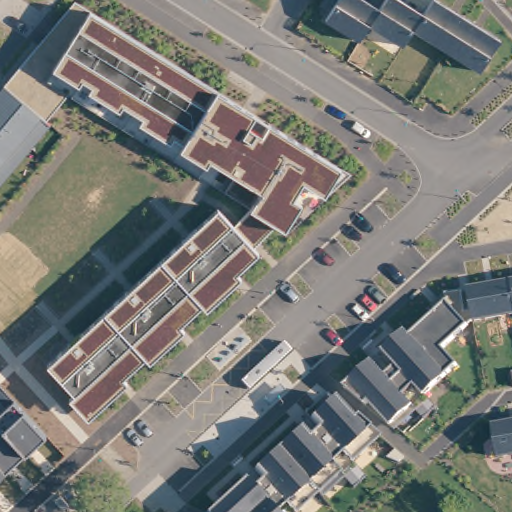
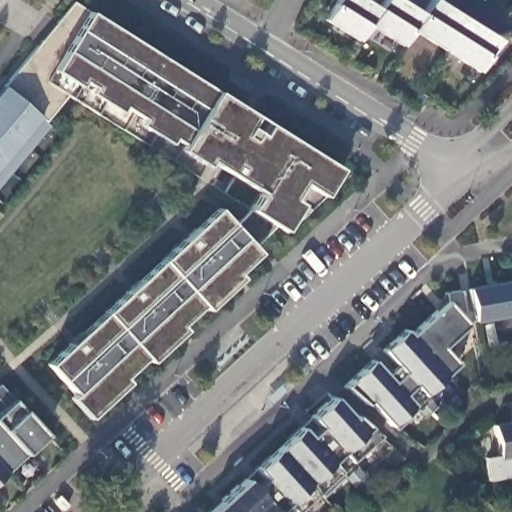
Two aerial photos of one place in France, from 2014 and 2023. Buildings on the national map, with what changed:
unchanged [(401,47),(368,27),(358,42),(329,23),(342,0),(361,0),(380,12),(387,0),(397,0),(423,17),(432,1),(498,40),(479,73),(412,31),(401,47)]
unchanged [(73,395),(45,364),(219,210),(235,227),(249,210),(260,197),(208,162),(204,167),(177,151),(166,145),(159,155),(66,97),(46,124),(53,128),(0,189),(0,94),(5,89),(74,5),(89,13),(219,95),(339,172),(324,196),(304,183),(292,202),(299,207),(283,233),(277,231),(257,255),(235,276),(239,281),(204,312),(199,307),(179,327),(183,332),(147,363),(144,360),(122,380),(125,383),(89,417),(70,399),(73,395)]
unchanged [(469,288),(512,281),(512,317),(473,323),(469,288)]
unchanged [(369,401),(364,403),(347,387),(373,361),(384,373),(394,365),(383,352),(405,332),(410,337),(449,303),(467,327),(443,351),(456,366),(424,396),(416,387),(404,397),(413,407),(392,427),(369,401)]
unchanged [(245,481),(252,487),(263,477),(256,470),(300,428),(309,437),(318,427),(309,418),(332,398),(352,421),(356,417),(369,430),(379,437),(353,462),(344,453),(334,463),(343,471),(296,511),(289,502),(281,512),(211,512),(245,481)]
unchanged [(43,440),(0,479),(0,416),(15,403),(43,440)]
unchanged [(494,424),(512,421),(512,456),(498,458),(494,424)]

